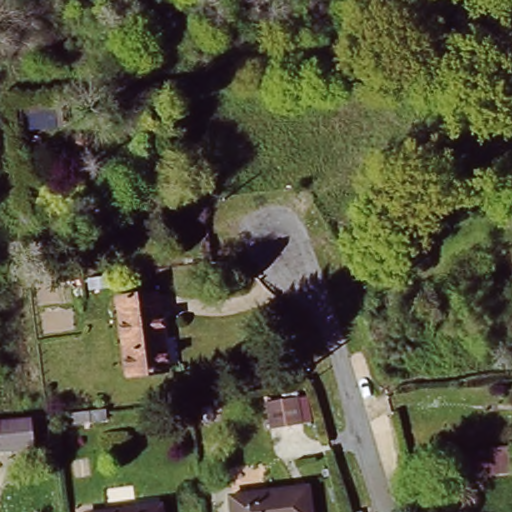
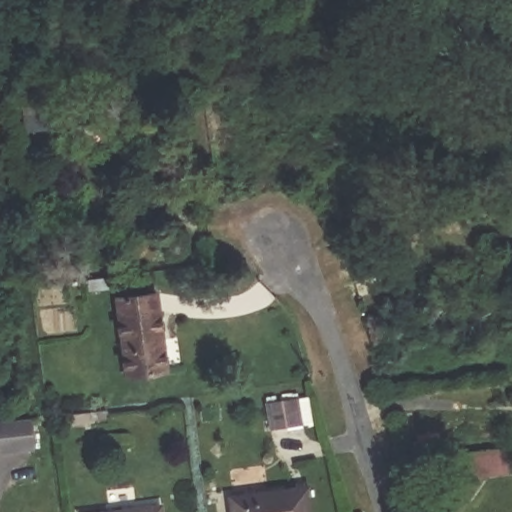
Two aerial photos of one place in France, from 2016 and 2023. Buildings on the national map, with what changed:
unchanged [(43,87),(62,85),(62,82),(77,81),(78,94),(73,94),(73,106),(44,107),(43,87)]
unchanged [(160,290),(170,364),(139,369),(127,295),(160,290)]
unchanged [(304,392),(306,419),(273,422),(271,396),(304,392)]
unchanged [(30,413),(34,443),(0,447),(0,415),(30,413)]
unchanged [(477,470),(475,448),(512,444),(512,467),(477,470)]
unchanged [(310,512),(241,512),(240,493),(308,486),(310,512)]
unchanged [(162,512),(140,512),(162,509),(162,512)]

